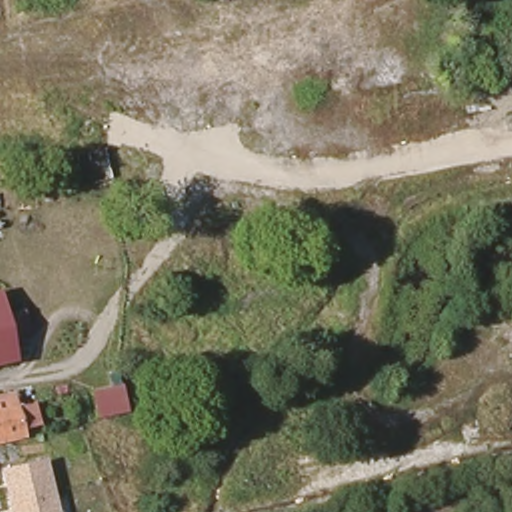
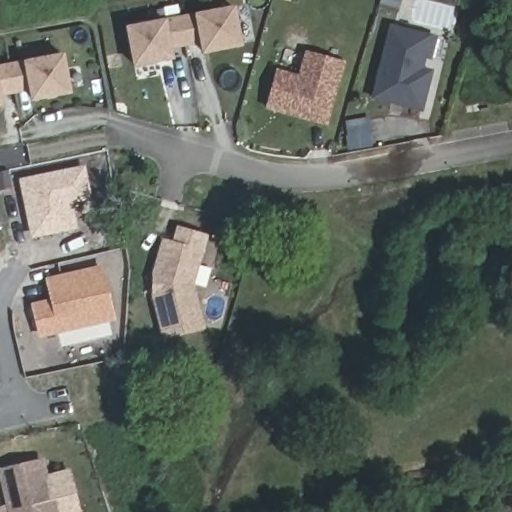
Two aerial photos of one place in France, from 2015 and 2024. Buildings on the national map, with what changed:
new [(173,47),(174,59),(132,66),(126,25),(167,18),(195,12),(236,5),(243,47),(201,55),(199,44),(173,47)]
new [(424,66),(433,69),(422,112),(371,100),(390,25),(430,35),(424,66)]
new [(327,127),(266,109),(277,69),(299,75),(305,51),(346,60),(327,127)]
new [(3,106),(0,107),(0,64),(24,60),(65,52),(72,94),(31,100),(29,90),(1,95),(3,106)]
demolished [(103,152),(281,114),(289,154),(274,155),(271,144),(107,184),(103,152)]
new [(19,179),(85,165),(92,198),(71,202),(76,229),(31,239),(19,179)]
new [(194,285),(205,329),(162,340),(152,296),(153,275),(161,237),(173,241),(177,226),(208,235),(194,285)]
new [(111,322),(37,339),(30,307),(49,302),(44,278),(102,265),(115,318),(111,322)]
demolished [(0,349),(0,314),(7,347),(0,349)]
demolished [(89,388),(140,380),(145,403),(128,407),(128,413),(97,420),(89,388)]
demolished [(23,434),(0,439),(0,395),(18,391),(21,405),(34,401),(39,422),(22,427),(23,434)]
unchanged [(0,468),(43,457),(56,512),(0,512),(0,511),(7,509),(0,479),(0,468)]
new [(47,474),(70,468),(81,512),(56,512),(47,474)]

